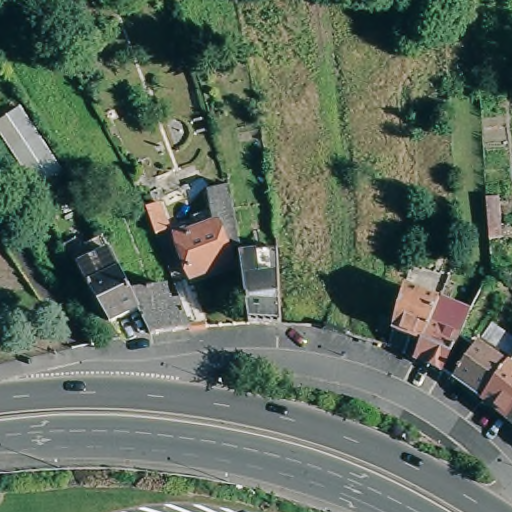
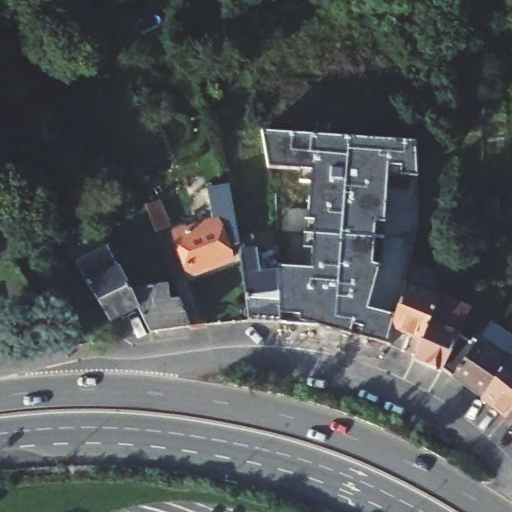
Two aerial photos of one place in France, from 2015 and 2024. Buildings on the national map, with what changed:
unchanged [(37,191),(0,134),(0,117),(20,104),(65,173),(37,191)]
new [(283,268),(311,271),(315,218),(309,218),(312,170),(269,167),(261,132),(413,143),(416,177),(387,176),(381,268),(366,312),(393,318),(386,345),(337,331),(286,323),(283,268)]
unchanged [(234,182),(240,214),(244,243),(233,245),(237,258),(196,273),(181,234),(183,233),(181,228),(190,225),(192,230),(217,221),(212,186),(234,182)]
unchanged [(499,195),(502,236),(489,236),(486,196),(499,195)]
unchanged [(165,198),(175,225),(161,230),(151,204),(165,198)]
unchanged [(74,236),(89,260),(82,264),(67,241),(74,236)]
unchanged [(286,323),(255,321),(245,250),(282,245),(286,323)]
unchanged [(85,268),(116,251),(123,266),(134,288),(155,332),(142,334),(131,314),(117,320),(128,337),(112,339),(97,316),(82,293),(95,284),(93,282),(85,268)]
unchanged [(174,283),(177,298),(186,297),(197,326),(185,327),(155,332),(134,288),(164,284),(174,283)]
unchanged [(439,302),(422,343),(392,331),(404,289),(439,302)]
unchanged [(469,317),(459,338),(442,373),(415,361),(422,343),(439,302),(469,317)]
unchanged [(459,338),(470,346),(474,341),(507,366),(483,402),(462,387),(442,373),(459,338)]
unchanged [(483,402),(507,366),(512,360),(512,415),(507,421),(483,402)]
unchanged [(510,424),(507,421),(512,415),(512,426),(510,424)]

